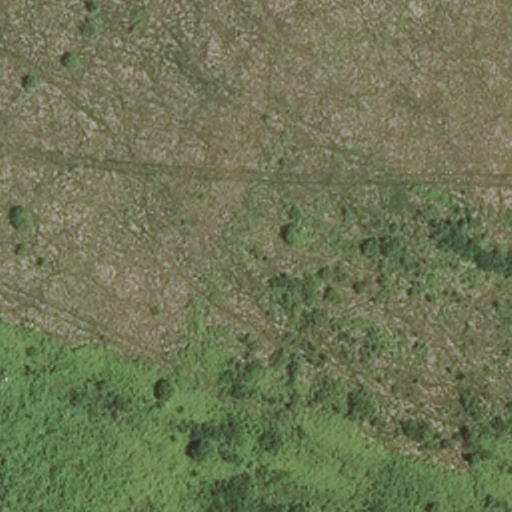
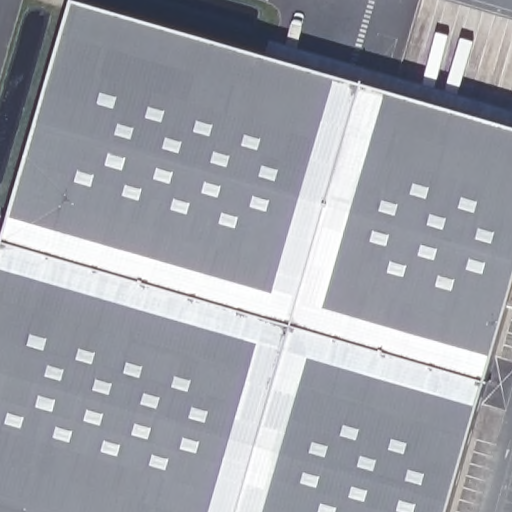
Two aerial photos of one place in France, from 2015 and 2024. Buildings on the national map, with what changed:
new [(262,54),(271,40),(512,109),(512,305),(508,303),(448,512),(0,512),(0,256),(74,0),(80,0),(262,54)]

